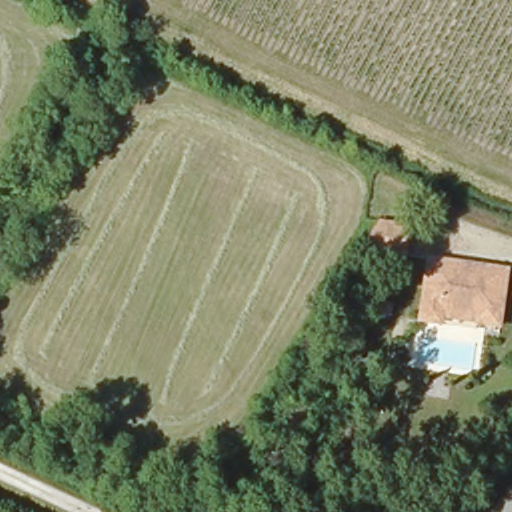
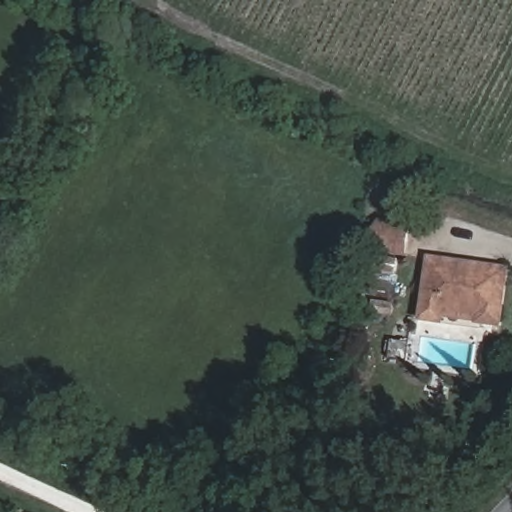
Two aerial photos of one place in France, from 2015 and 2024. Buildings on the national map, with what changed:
unchanged [(374,227),(407,227),(407,256),(358,255),(374,227)]
unchanged [(439,323),(421,321),(425,262),(506,267),(501,316),(475,315),(440,312),(439,323)]

